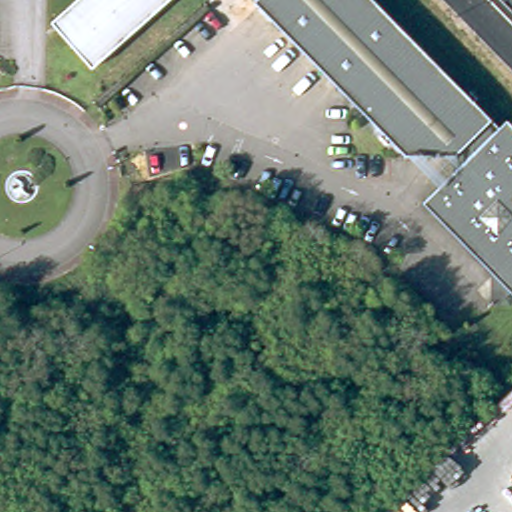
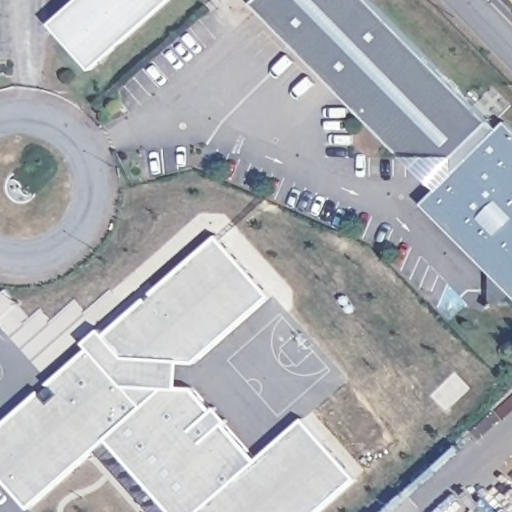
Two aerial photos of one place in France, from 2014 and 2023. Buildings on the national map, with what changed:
unchanged [(70,0),(164,0),(87,67),(47,21),(70,0)]
unchanged [(421,199),(435,186),(404,153),(256,0),(377,0),(498,124),(505,118),(512,125),(512,302),(487,300),(488,270),(421,199)]
new [(193,365),(179,365),(179,385),(195,387),(256,457),(301,420),(353,477),(314,512),(170,512),(105,440),(31,509),(0,473),(0,425),(213,236),(271,295),(193,365)]

